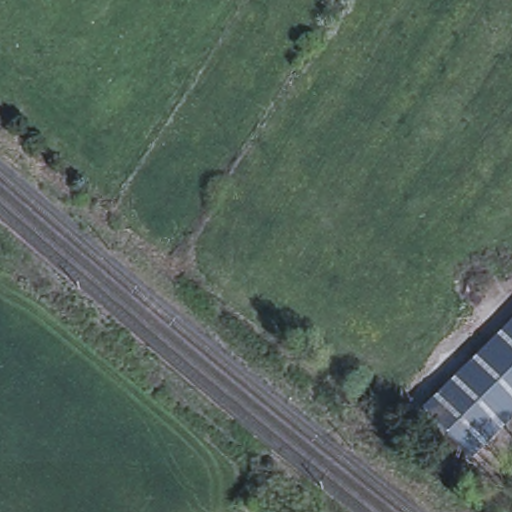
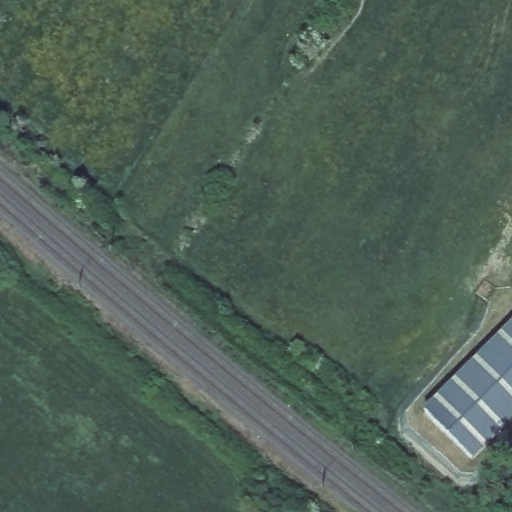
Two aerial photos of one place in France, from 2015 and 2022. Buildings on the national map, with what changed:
unchanged [(472,455),(425,409),(512,320),(512,413),(472,455)]

